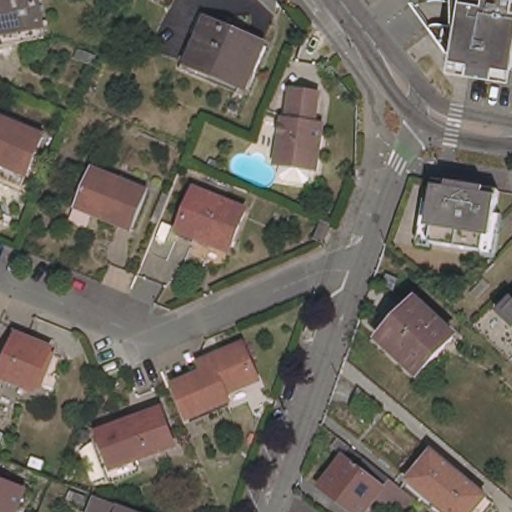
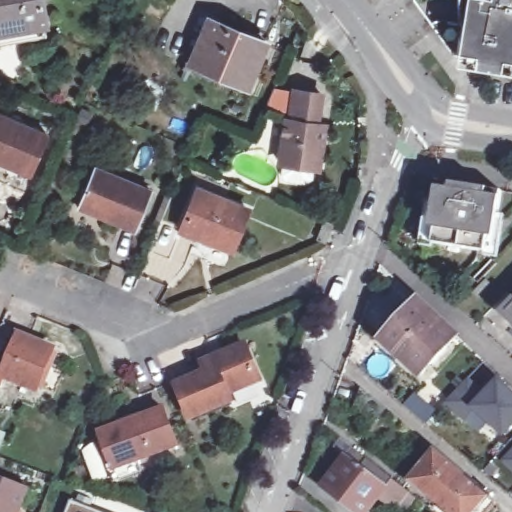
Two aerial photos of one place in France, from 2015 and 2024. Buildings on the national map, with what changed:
unchanged [(0,0),(36,0),(41,29),(0,35),(0,0)]
unchanged [(498,56),(497,62),(492,62),(471,58),(471,51),(454,49),(462,6),(454,5),(455,0),(512,0),(512,59),(498,56)]
unchanged [(194,65),(212,23),(266,45),(248,86),(194,65)]
unchanged [(0,96),(0,81),(5,83),(0,96)]
unchanged [(283,161),(289,120),(293,120),(297,90),(323,93),(319,123),(328,125),(326,133),(321,167),(283,161)]
unchanged [(0,169),(0,115),(44,134),(25,179),(0,169)]
unchanged [(74,207),(91,168),(148,190),(131,231),(74,207)]
unchanged [(484,257),(431,248),(425,247),(429,227),(436,186),(500,196),(493,238),(490,258),(484,257)]
unchanged [(181,228),(198,189),(251,210),(233,249),(181,228)]
unchanged [(330,240),(321,237),(327,219),(337,223),(331,241),(330,240)]
unchanged [(386,338),(421,300),(458,336),(424,373),(386,338)]
unchanged [(506,312),(512,305),(512,318),(506,312)]
unchanged [(36,388),(3,376),(0,382),(0,358),(7,360),(18,332),(52,346),(36,388)]
unchanged [(261,379),(228,393),(231,400),(191,417),(178,383),(208,371),(204,362),(214,358),(246,345),(261,379)]
new [(466,418),(448,400),(468,379),(486,396),(500,380),(512,392),(512,427),(505,434),(490,420),(480,430),(466,418)]
unchanged [(356,402),(361,388),(388,410),(379,421),(356,402)]
unchanged [(113,474),(110,467),(96,431),(159,407),(174,442),(134,458),(136,465),(113,474)]
unchanged [(339,458),(336,456),(343,446),(403,493),(408,497),(397,512),(389,512),(372,500),(363,512),(348,512),(316,487),(339,458)]
unchanged [(436,451),(489,496),(476,512),(451,512),(413,479),(436,451)]
new [(506,461),(512,455),(512,467),(506,461)]
unchanged [(17,512),(0,512),(0,484),(24,493),(17,512)]
unchanged [(134,512),(87,512),(93,496),(134,512)]

